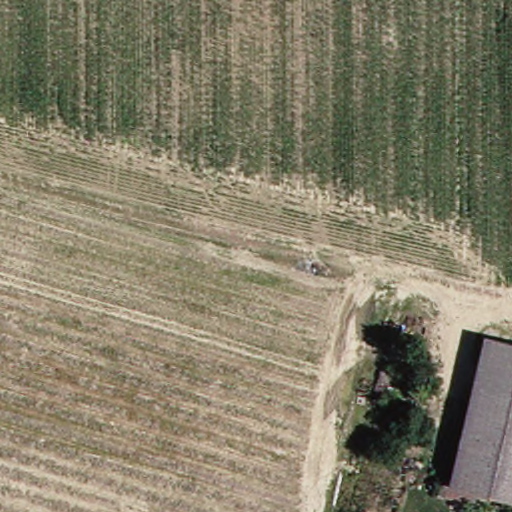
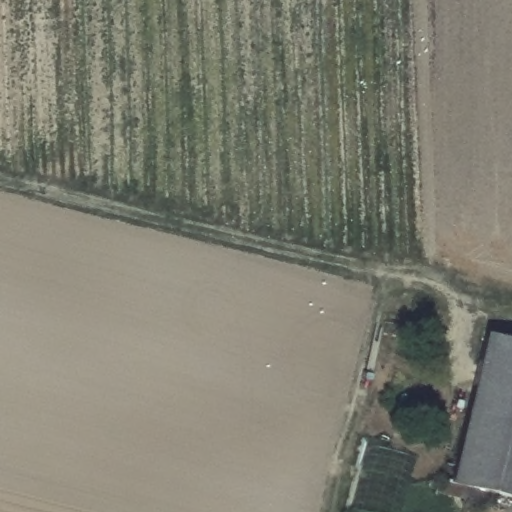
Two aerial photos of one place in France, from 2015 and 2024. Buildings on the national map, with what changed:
unchanged [(476,341),(512,349),(512,410),(463,399),(476,341)]
unchanged [(463,399),(512,410),(512,502),(444,485),(463,399)]

